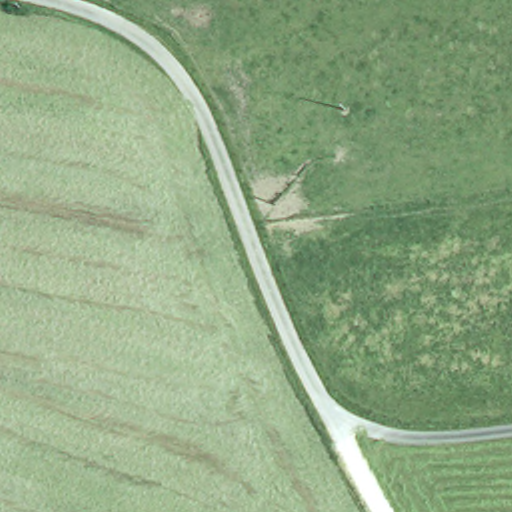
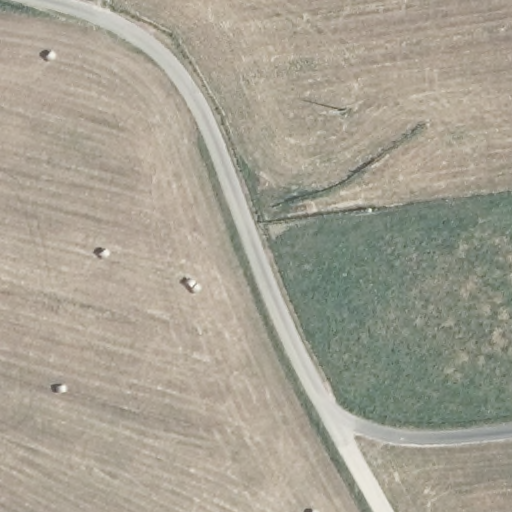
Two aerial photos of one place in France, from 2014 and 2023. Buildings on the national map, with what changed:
[]

